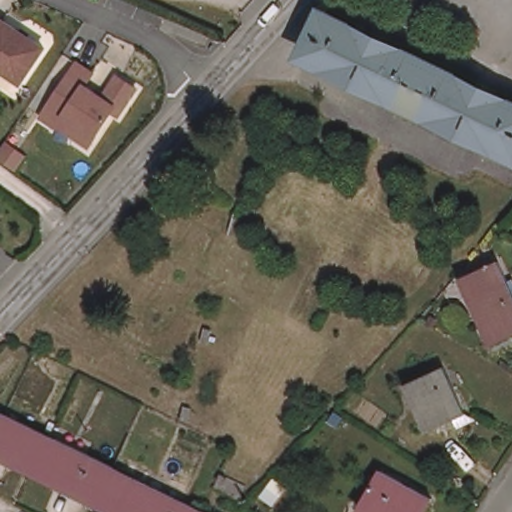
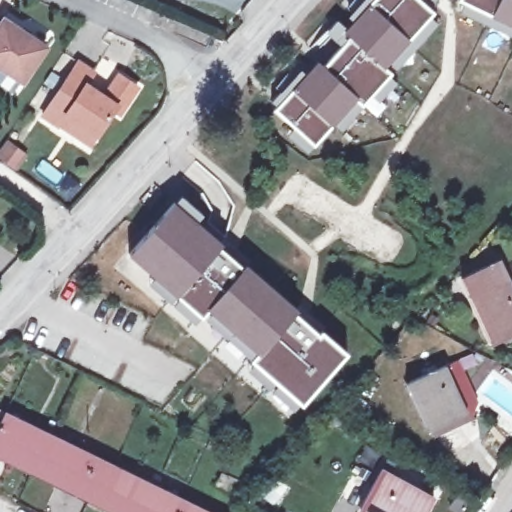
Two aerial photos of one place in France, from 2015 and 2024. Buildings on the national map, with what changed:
new [(327,66),(352,38),(345,30),(373,0),(421,0),(435,12),(387,66),(392,71),(363,105),(355,99),(315,144),(275,109),(319,60),(327,66)]
new [(462,0),(512,0),(512,26),(462,0)]
demolished [(308,54),(327,14),(512,103),(512,150),(308,54)]
unchanged [(6,20),(47,47),(24,81),(0,66),(0,23),(2,25),(6,20)]
unchanged [(80,62),(95,72),(87,85),(105,96),(120,75),(138,89),(120,115),(115,111),(92,144),(78,134),(83,125),(67,115),(62,121),(55,123),(43,115),(80,62)]
new [(347,353),(302,403),(250,360),(257,353),(207,310),(201,317),(127,254),(175,200),(347,353)]
demolished [(239,231),(232,230),(235,215),(243,217),(239,231)]
unchanged [(495,342),(465,276),(500,260),(512,286),(512,334),(495,342)]
demolished [(203,340),(207,326),(214,328),(210,342),(203,340)]
unchanged [(433,428),(411,381),(446,365),(468,412),(433,428)]
demolished [(190,420),(182,418),(186,405),(193,407),(190,420)]
unchanged [(216,512),(120,512),(0,453),(0,434),(11,411),(216,512)]
unchanged [(425,512),(373,512),(362,506),(383,469),(434,497),(425,512)]
unchanged [(241,497),(216,485),(222,472),(247,483),(241,497)]

